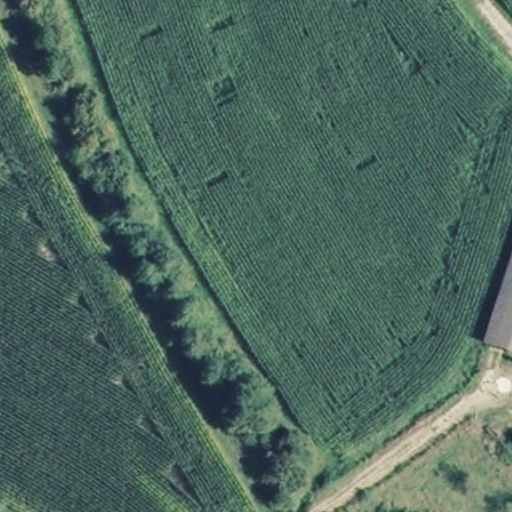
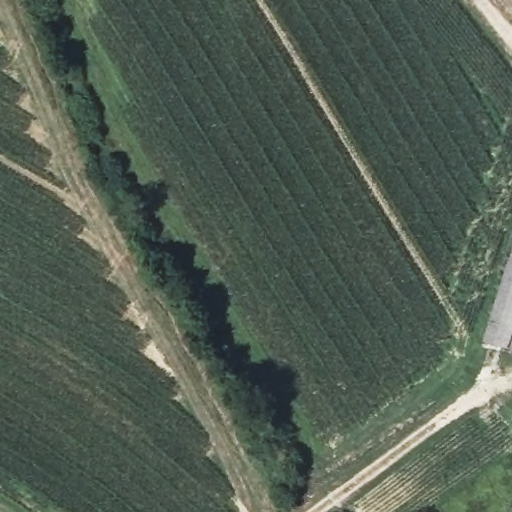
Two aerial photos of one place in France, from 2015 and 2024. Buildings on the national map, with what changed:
unchanged [(487,343),(512,253),(512,350),(487,343)]

